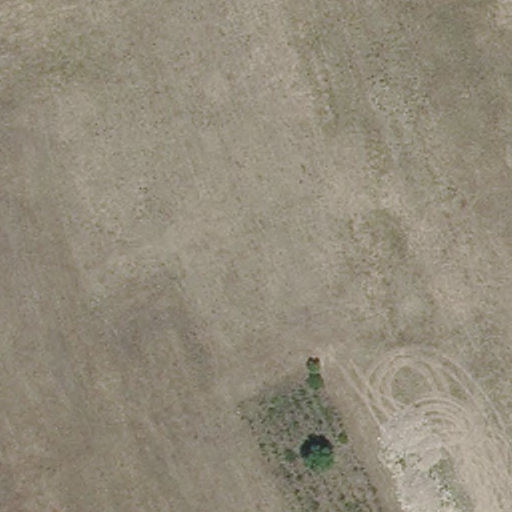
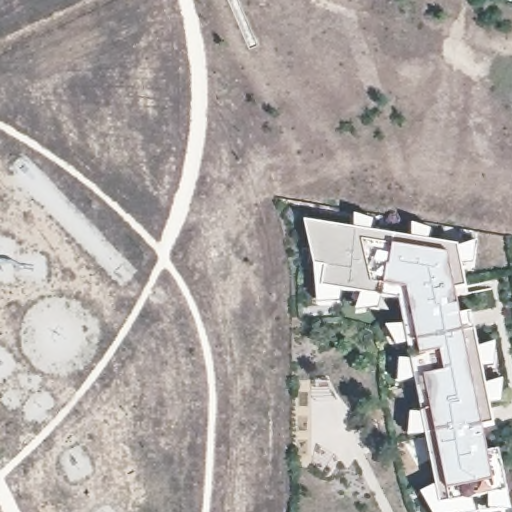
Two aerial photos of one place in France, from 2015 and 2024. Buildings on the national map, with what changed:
new [(355,229),(355,212),(375,220),(373,232),(355,229)]
new [(455,245),(465,290),(454,292),(457,309),(456,309),(458,317),(470,314),(494,425),(483,427),(483,428),(485,435),(488,452),(500,449),(511,508),(489,512),(462,512),(460,503),(442,507),(399,300),(324,287),(327,267),(316,265),(306,221),(455,245)]
new [(413,238),(414,222),(434,229),(432,241),(413,238)]
new [(474,241),(471,263),(460,266),(456,247),(474,241)]
new [(340,306),(310,301),(316,265),(327,267),(324,287),(343,290),(340,306)]
new [(381,297),(380,308),(357,309),(362,294),(381,297)]
new [(408,344),(397,346),(388,326),(405,325),(408,344)]
new [(478,350),(495,344),(493,366),(482,369),(478,350)]
new [(415,378),(400,384),(400,362),(411,359),(415,378)]
new [(485,386),(503,379),(501,402),(490,405),(485,386)]
new [(427,434),(411,435),(413,414),(423,413),(427,434)]
new [(442,507),(460,503),(462,512),(434,512),(420,492),(437,482),(442,507)]

